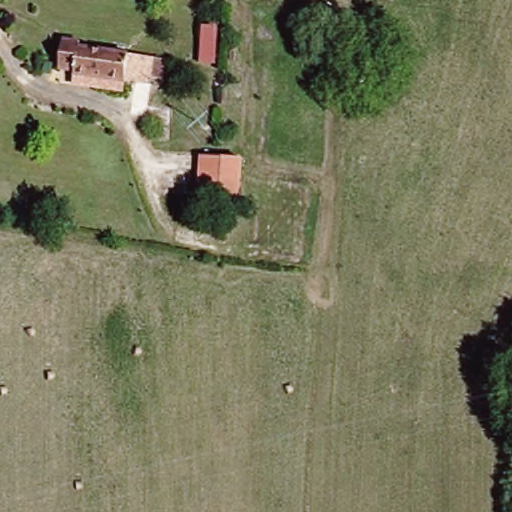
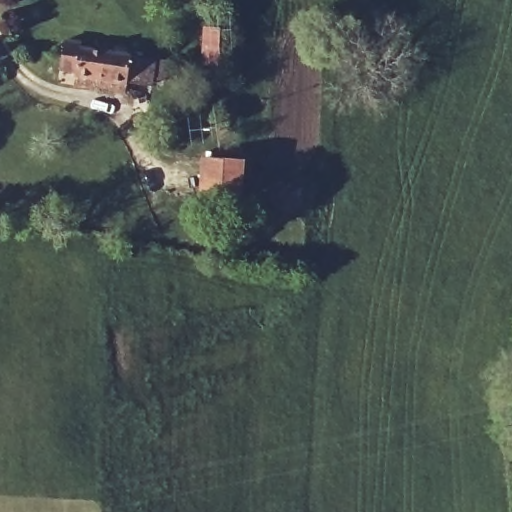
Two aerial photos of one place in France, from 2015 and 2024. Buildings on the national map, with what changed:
unchanged [(220,65),(200,63),(203,25),(225,26),(220,65)]
unchanged [(73,66),(73,62),(57,59),(63,32),(78,35),(78,39),(157,55),(151,82),(73,66)]
unchanged [(245,196),(202,194),(204,156),(248,157),(245,196)]

